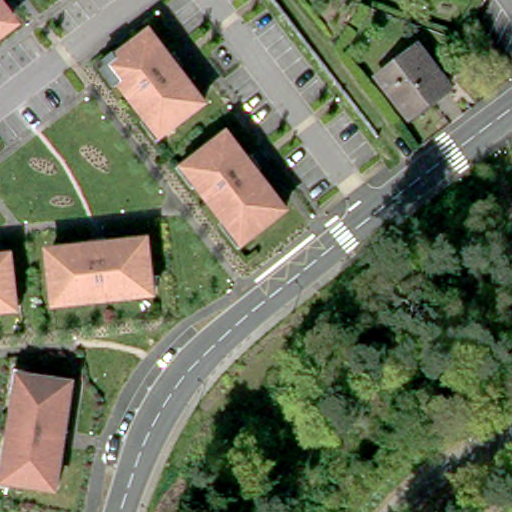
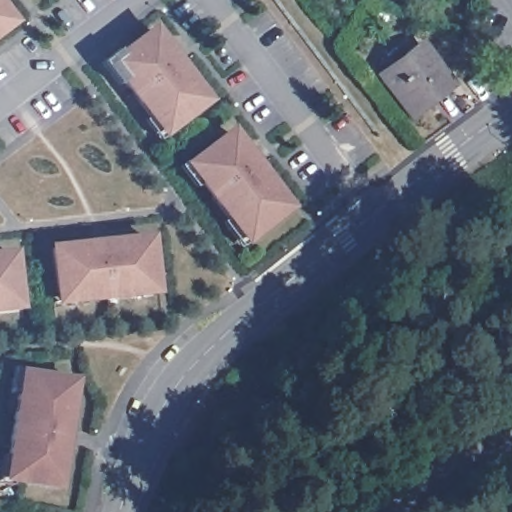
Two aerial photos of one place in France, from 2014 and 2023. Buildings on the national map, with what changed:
unchanged [(0,37),(0,0),(18,24),(0,37)]
unchanged [(163,138),(100,61),(152,23),(211,101),(163,138)]
unchanged [(415,40),(446,79),(405,111),(375,71),(415,40)]
unchanged [(180,163),(230,127),(295,208),(243,247),(180,163)]
unchanged [(154,232),(160,296),(53,307),(45,245),(154,232)]
unchanged [(22,311),(0,314),(0,252),(15,250),(22,311)]
unchanged [(23,370),(81,378),(60,491),(2,481),(23,370)]

